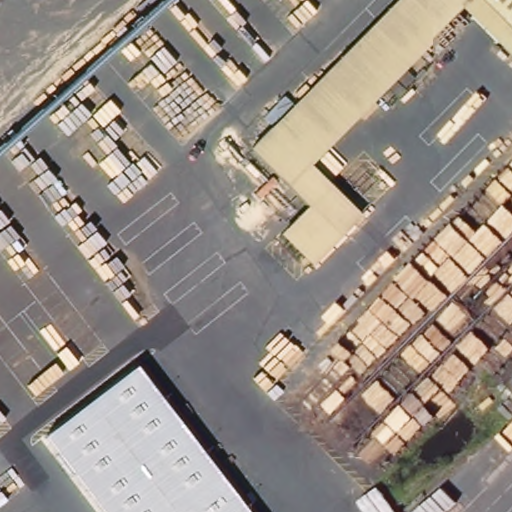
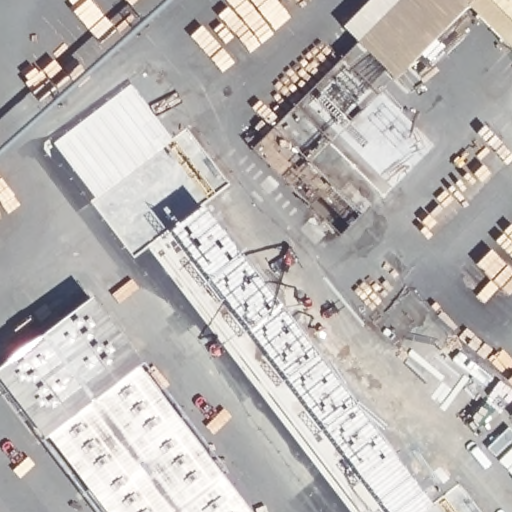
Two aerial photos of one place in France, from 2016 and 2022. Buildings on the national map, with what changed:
unchanged [(312,162),(362,215),(340,237),(252,146),(393,0),(475,0),(312,162)]
unchanged [(512,25),(487,0),(512,0),(512,25)]
new [(340,237),(310,267),(280,234),(309,205),(340,237)]
new [(135,367),(47,435),(41,440),(0,385),(0,366),(89,298),(139,362),(135,367)]
unchanged [(135,367),(222,482),(181,512),(102,512),(45,436),(135,367)]
unchanged [(245,512),(181,512),(222,482),(245,512)]

